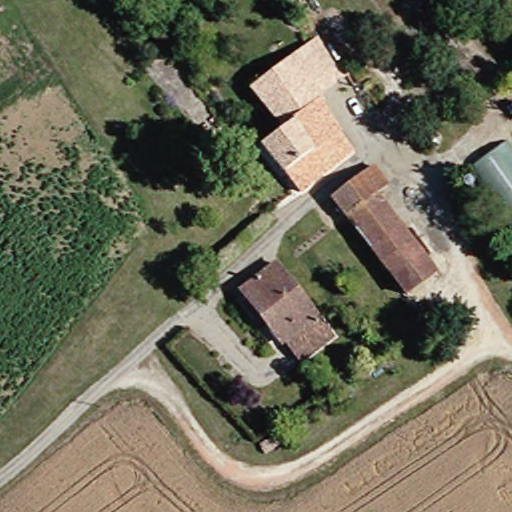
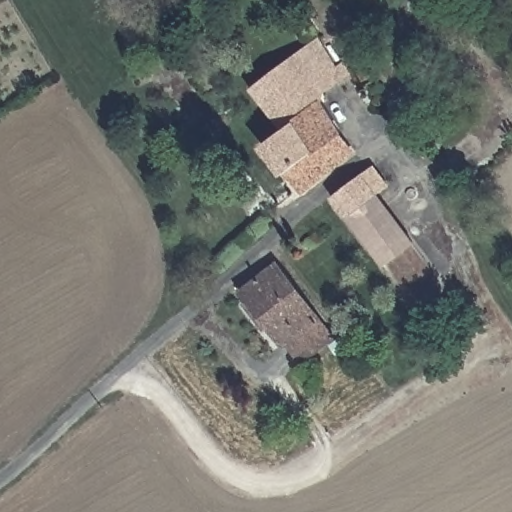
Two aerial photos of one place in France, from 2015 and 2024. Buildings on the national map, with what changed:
unchanged [(340,161),(305,188),(266,141),(291,124),(257,84),(322,34),(340,63),(348,59),(354,68),(321,95),(342,128),(356,148),(340,161)]
unchanged [(337,198),(380,168),(393,187),(380,196),(351,217),(337,198)]
unchanged [(380,196),(439,274),(411,295),(351,217),(380,196)]
unchanged [(337,339),(307,363),(291,342),(287,345),(246,292),(281,264),(337,339)]

